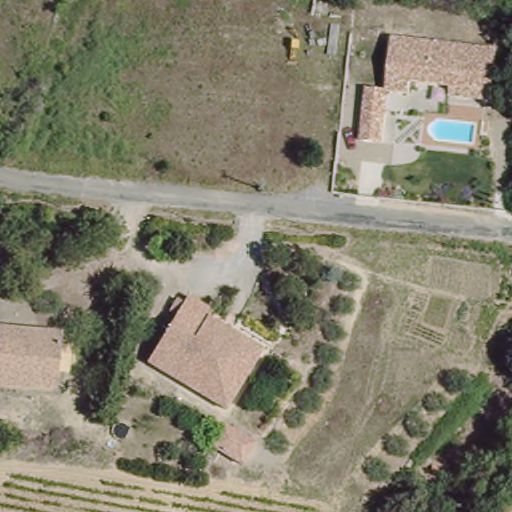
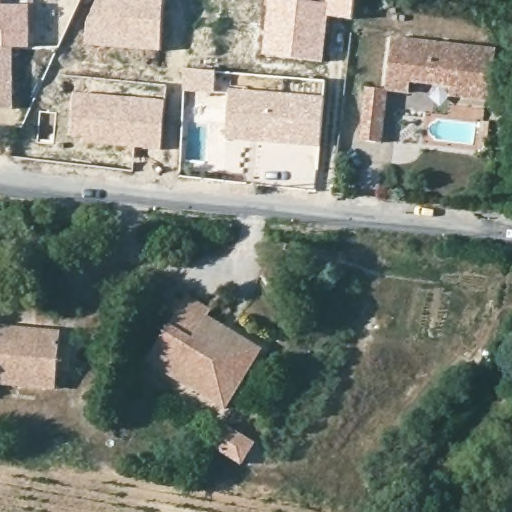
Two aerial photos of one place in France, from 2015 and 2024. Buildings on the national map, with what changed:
new [(30,6),(30,49),(15,48),(0,48),(0,0),(3,0),(3,6),(30,6)]
new [(95,0),(165,0),(161,52),(85,45),(88,21),(95,0)]
new [(328,0),(355,0),(353,20),(328,16),(323,62),(262,54),(269,0),(310,0),(327,2),(328,0)]
unchanged [(367,86),(386,88),(395,36),(499,51),(493,103),(453,95),(455,88),(416,83),(413,92),(400,92),(393,147),(360,138),(367,86)]
new [(15,48),(14,110),(0,111),(0,48),(15,48)]
new [(184,67),(216,71),(214,94),(182,91),(184,67)]
new [(229,86),(257,90),(288,91),(325,93),(320,148),(225,139),(229,86)]
new [(75,89),(166,99),(161,150),(100,144),(70,139),(75,89)]
unchanged [(236,331),(262,347),(227,407),(148,360),(189,290),(217,307),(209,320),(232,338),(236,331)]
unchanged [(45,328),(65,334),(51,391),(0,378),(0,340),(5,319),(27,325),(25,333),(43,337),(45,328)]
unchanged [(226,429),(258,449),(245,470),(213,450),(226,429)]

